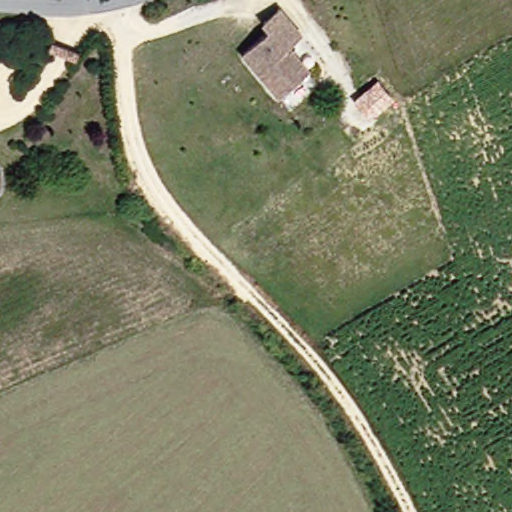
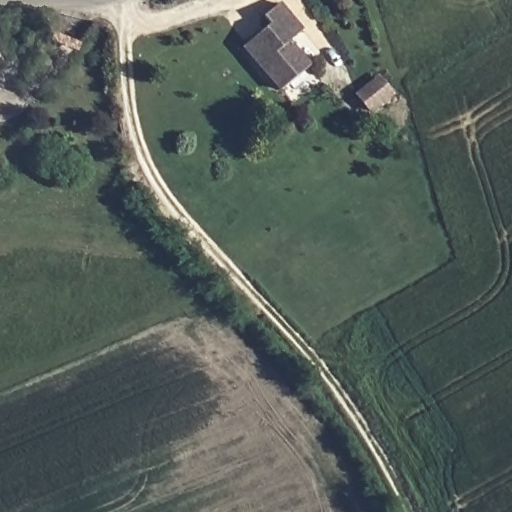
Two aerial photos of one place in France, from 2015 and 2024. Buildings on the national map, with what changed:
unchanged [(293,95),(252,40),(279,20),(274,12),(288,0),(290,0),(312,26),(299,39),(322,70),(293,95)]

